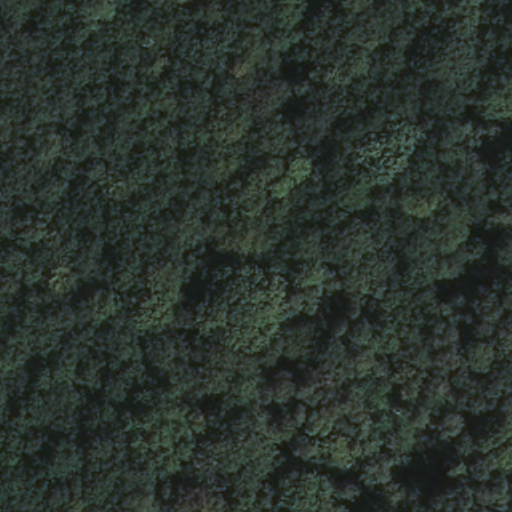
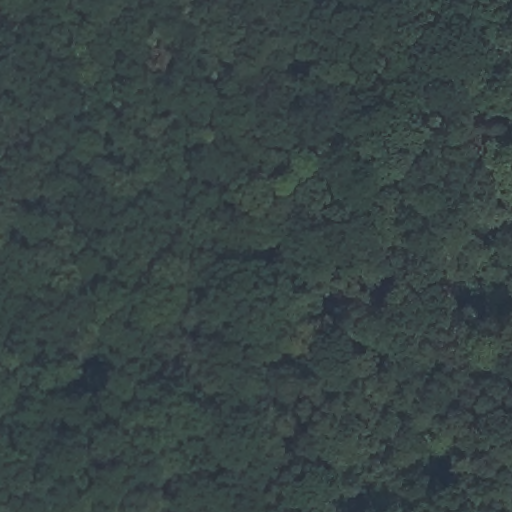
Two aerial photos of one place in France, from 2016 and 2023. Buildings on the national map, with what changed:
unchanged [(491,159),(493,188),(475,189),(472,160),(491,159)]

